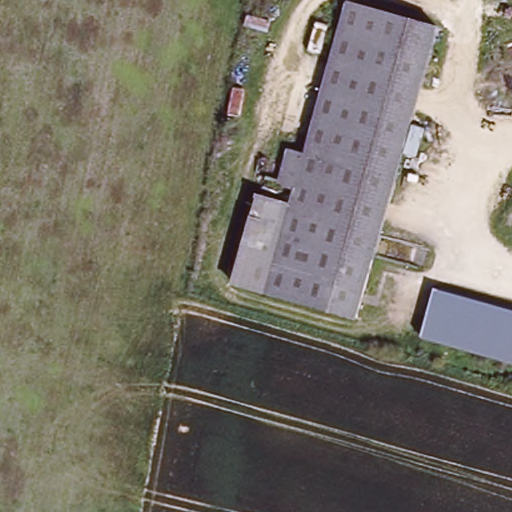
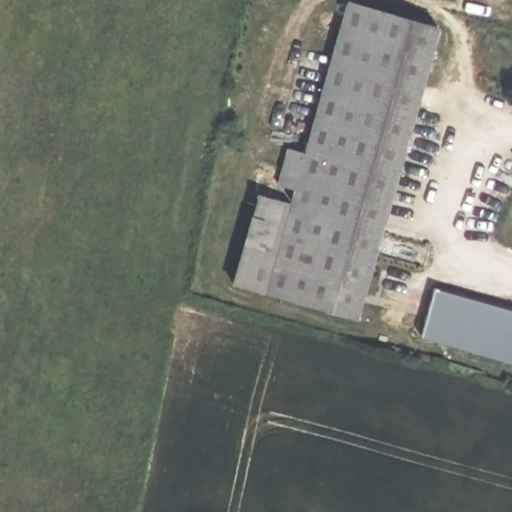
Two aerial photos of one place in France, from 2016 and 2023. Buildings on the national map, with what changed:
unchanged [(266,295),(291,209),(296,189),(285,186),(294,154),(306,158),(350,5),(434,29),(407,128),(422,131),(414,159),(400,155),(355,322),(266,295)]
unchanged [(232,286),(257,199),(291,209),(266,295),(232,286)]
unchanged [(421,334),(435,287),(512,307),(512,360),(421,334)]

